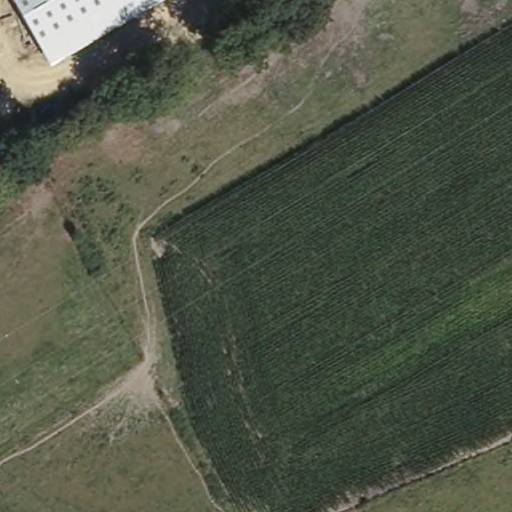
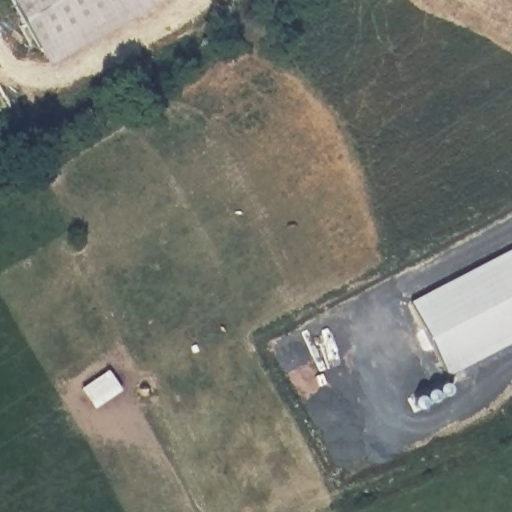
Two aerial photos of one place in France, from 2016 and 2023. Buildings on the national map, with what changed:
unchanged [(13,0),(169,0),(51,69),(13,0)]
new [(420,419),(406,400),(447,375),(410,310),(512,255),(512,368),(420,419)]

